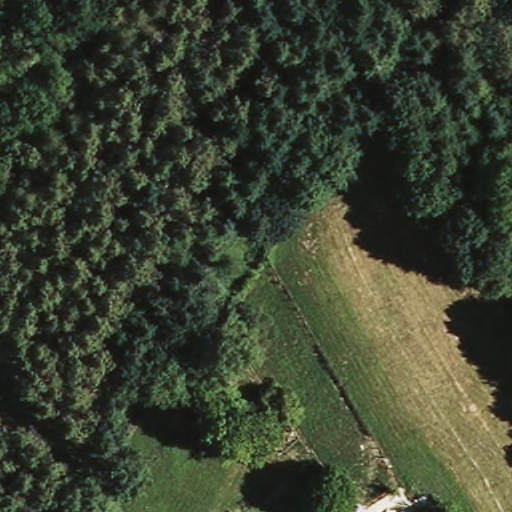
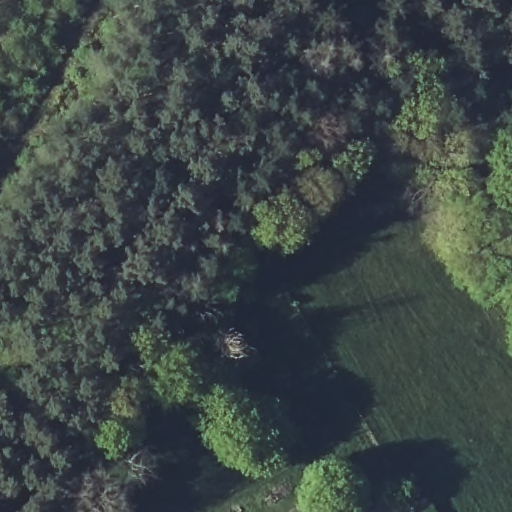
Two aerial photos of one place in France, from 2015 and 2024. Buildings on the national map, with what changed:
unchanged [(346,510),(347,512),(342,512),(346,510)]

